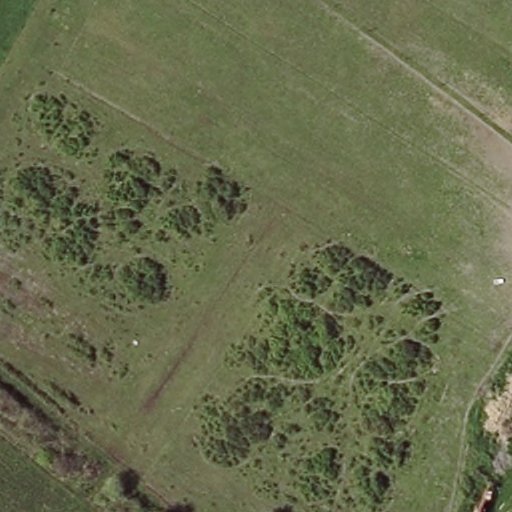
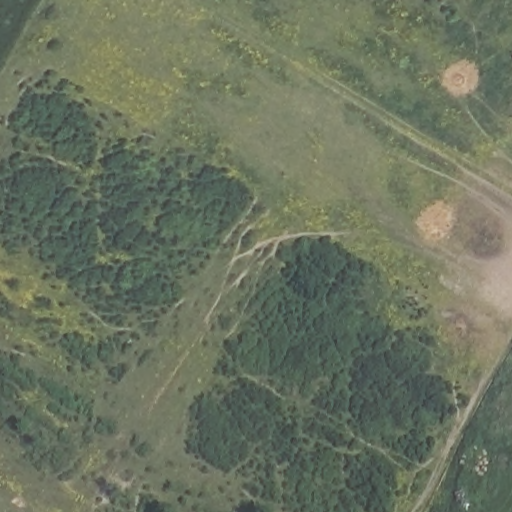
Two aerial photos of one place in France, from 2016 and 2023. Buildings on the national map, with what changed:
[]

